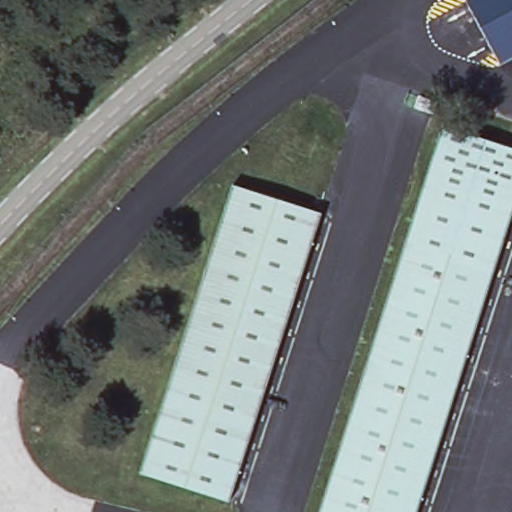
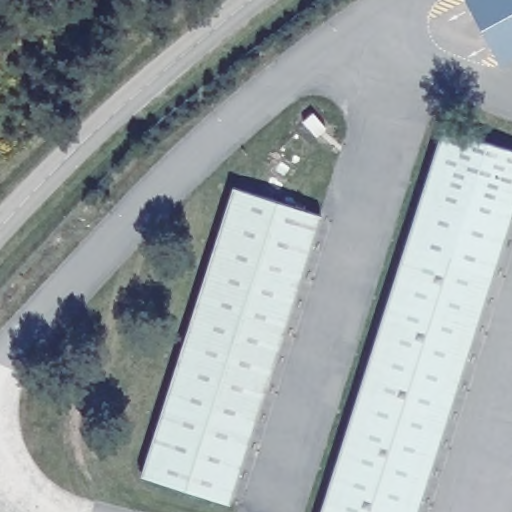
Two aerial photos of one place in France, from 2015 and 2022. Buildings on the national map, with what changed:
unchanged [(499,62),(467,0),(512,0),(512,56),(499,62)]
unchanged [(417,512),(322,512),(440,131),(512,152),(512,211),(417,512)]
unchanged [(318,210),(224,502),(135,475),(228,181),(318,210)]

